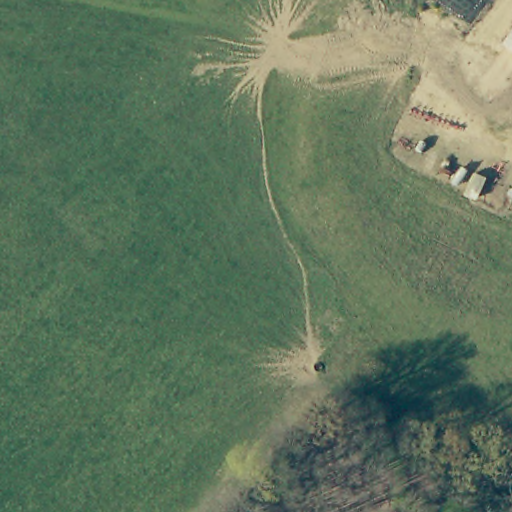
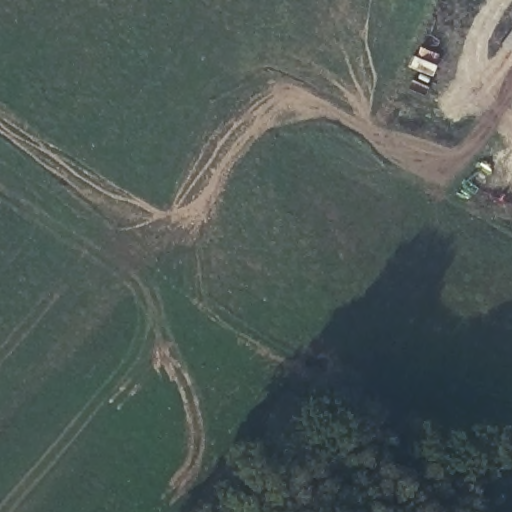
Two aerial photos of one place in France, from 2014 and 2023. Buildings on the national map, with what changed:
unchanged [(500,43),(512,26),(512,51),(500,43)]

